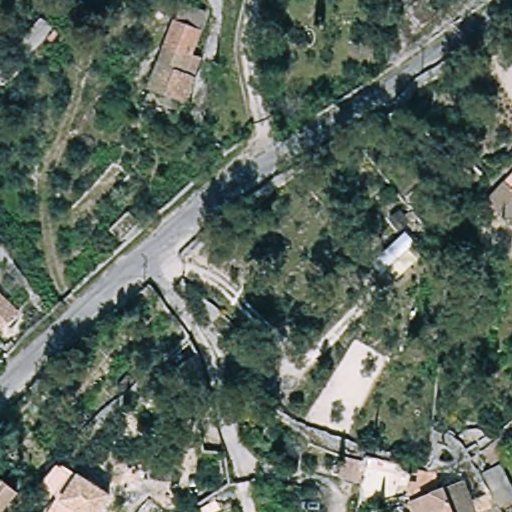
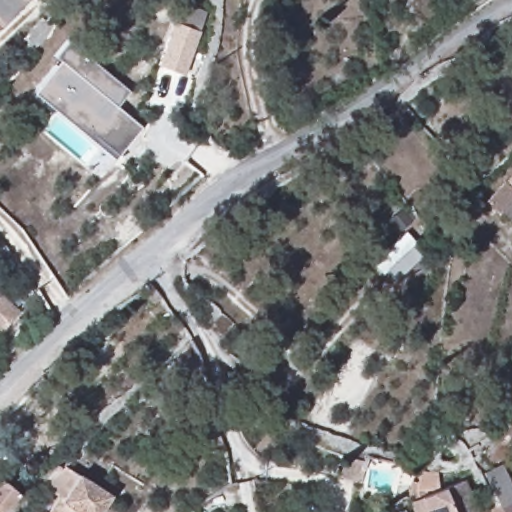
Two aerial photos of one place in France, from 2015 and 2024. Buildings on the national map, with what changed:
new [(0,28),(0,0),(28,0),(0,28)]
unchanged [(193,53),(203,58),(202,66),(184,101),(149,82),(192,0),(196,0),(209,7),(207,26),(193,53)]
new [(114,158),(33,91),(60,58),(56,55),(69,39),(129,89),(117,105),(141,125),(114,158)]
unchanged [(492,214),(479,202),(512,166),(512,193),(492,214)]
unchanged [(0,333),(0,292),(21,311),(0,333)]
unchanged [(184,382),(160,391),(152,376),(176,365),(184,382)]
unchanged [(62,396),(46,409),(30,392),(32,390),(46,377),(62,396)]
unchanged [(479,451),(500,437),(512,430),(512,445),(507,447),(508,453),(490,464),(479,451)]
unchanged [(0,509),(0,460),(1,459),(25,488),(0,509)]
unchanged [(57,490),(39,477),(53,460),(97,491),(99,492),(84,510),(82,512),(55,512),(45,505),(57,490)]
unchanged [(479,473),(487,469),(496,464),(512,497),(512,501),(504,505),(507,512),(489,512),(495,509),(479,473)]
unchanged [(420,497),(424,473),(440,473),(444,490),(470,482),(480,512),(410,512),(407,501),(420,497)]

